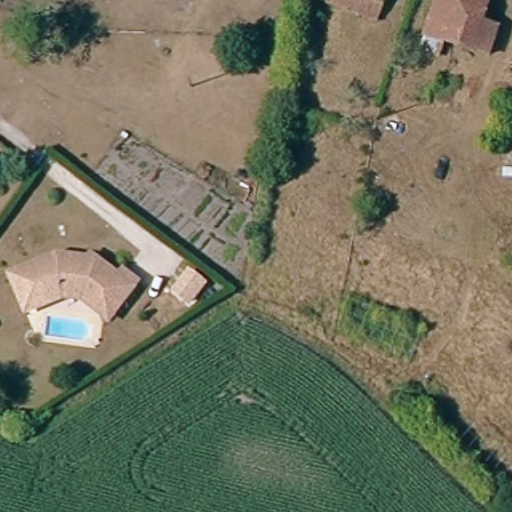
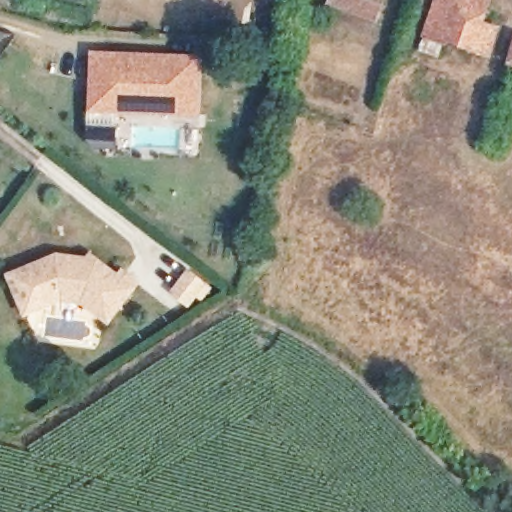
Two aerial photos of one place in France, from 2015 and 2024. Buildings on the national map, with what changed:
unchanged [(378,9),(352,0),(381,0),(378,9)]
unchanged [(470,49),(430,33),(426,32),(440,0),(492,0),(483,19),(501,25),(488,57),(485,55),(470,49)]
new [(16,36),(0,60),(0,32),(16,36)]
new [(91,52),(201,56),(200,117),(89,112),(91,52)]
unchanged [(512,70),(507,70),(512,52),(512,70)]
unchanged [(107,300),(94,290),(75,288),(37,305),(21,268),(68,247),(100,251),(102,246),(109,252),(131,267),(135,262),(149,272),(130,298),(121,310),(107,300)]

